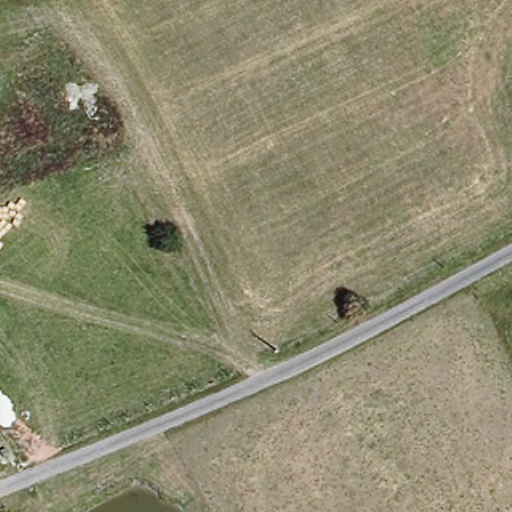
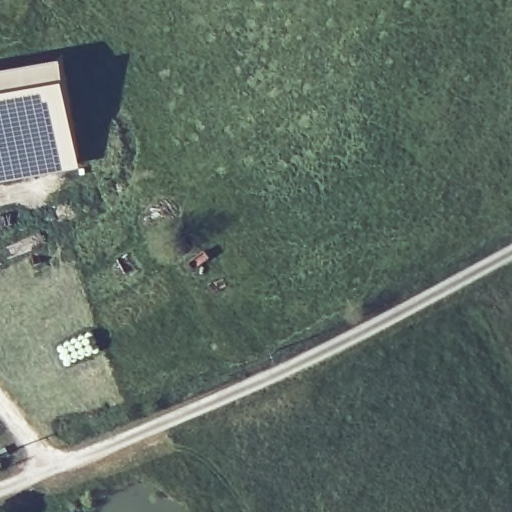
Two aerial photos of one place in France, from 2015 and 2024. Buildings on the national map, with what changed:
new [(65,78),(80,165),(0,179),(0,68),(60,58),(65,78)]

